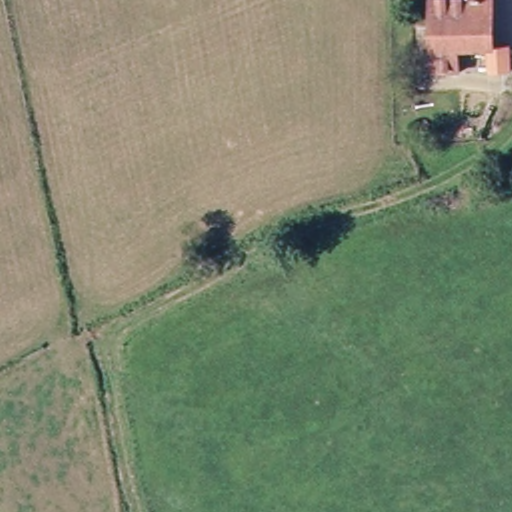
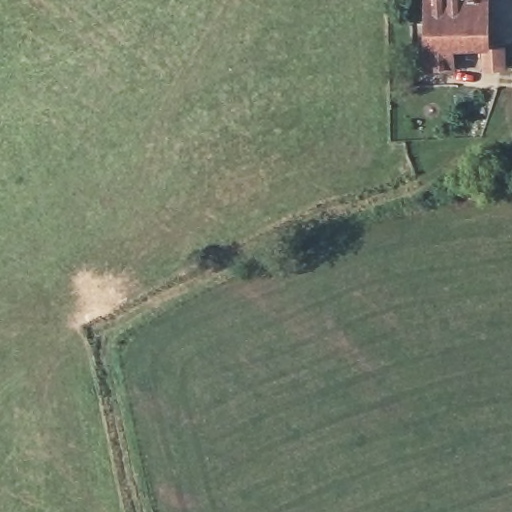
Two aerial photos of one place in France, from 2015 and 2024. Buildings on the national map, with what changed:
unchanged [(431,71),(430,3),(461,2),(461,0),(482,0),(482,1),(483,51),(455,52),(455,72),(431,71)]
unchanged [(483,51),(502,49),(506,70),(483,71),(483,51)]

